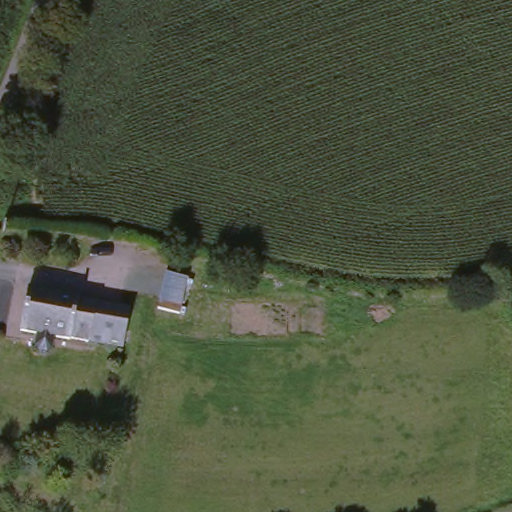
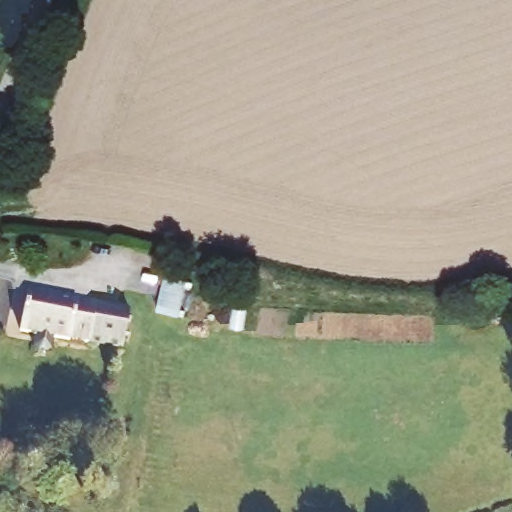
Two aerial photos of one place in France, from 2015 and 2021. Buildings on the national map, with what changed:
unchanged [(129,263),(134,240),(154,244),(149,267),(129,263)]
unchanged [(101,299),(102,301),(135,306),(129,345),(59,334),(56,354),(39,352),(43,333),(28,331),(33,290),(101,299)]

